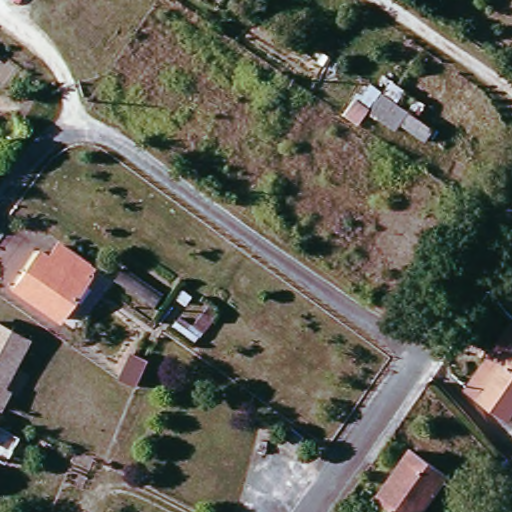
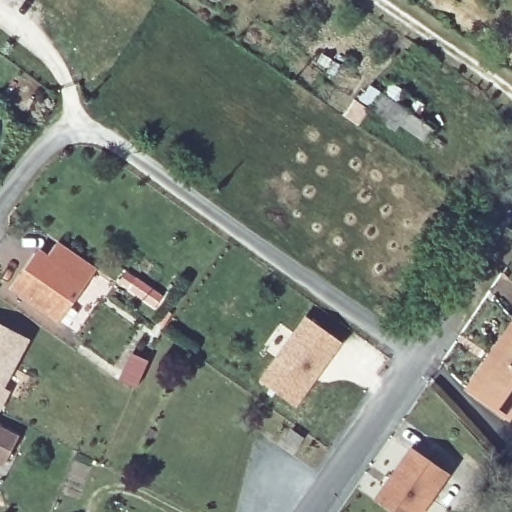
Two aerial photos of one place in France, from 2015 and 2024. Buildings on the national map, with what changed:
unchanged [(431,129),(421,142),(372,106),(379,94),(431,129)]
unchanged [(53,259),(61,246),(94,269),(61,318),(17,288),(41,252),(53,259)]
new [(297,404),(263,380),(309,316),(343,340),(324,367),(318,376),(297,404)]
unchanged [(4,386),(13,391),(3,409),(0,408),(0,322),(29,337),(4,386)]
unchanged [(499,413),(469,391),(512,330),(512,395),(499,413)]
unchanged [(145,361),(133,387),(118,381),(130,355),(145,361)]
unchanged [(0,439),(0,426),(5,428),(0,439)]
unchanged [(294,448),(283,439),(288,432),(299,440),(294,448)]
unchanged [(444,474),(418,512),(393,512),(374,498),(409,449),(444,474)]

